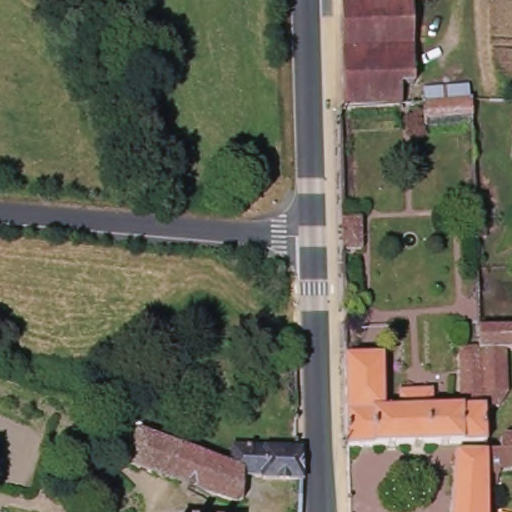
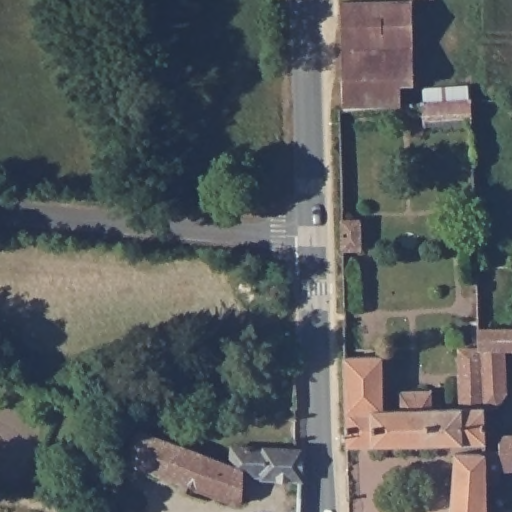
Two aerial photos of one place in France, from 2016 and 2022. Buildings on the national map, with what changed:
unchanged [(410,0),(422,0),(411,1),(410,0)]
unchanged [(411,1),(412,86),(399,86),(399,107),(399,109),(342,112),(340,4),(411,1)]
unchanged [(426,90),(470,90),(471,102),(472,129),(427,129),(427,105),(426,90)]
unchanged [(358,224),(359,254),(344,254),(343,224),(358,224)]
unchanged [(387,413),(402,413),(402,393),(437,392),(437,411),(463,411),(462,351),(480,351),(481,341),(482,331),(512,331),(512,352),(509,352),(510,394),(498,412),(486,412),(486,447),(347,451),(346,358),(386,359),(387,413)]
unchanged [(131,451),(116,445),(122,424),(128,427),(131,427),(189,450),(221,462),(234,467),(235,448),(292,452),(301,452),(302,481),(270,480),(270,475),(247,474),(245,501),(235,503),(180,485),(162,478),(126,466),(131,451)]
unchanged [(487,457),(490,456),(500,455),(504,454),(503,443),(508,438),(512,438),(512,466),(499,468),(499,476),(497,476),(497,485),(497,487),(503,487),(503,488),(503,502),(510,502),(509,512),(486,512),(487,461),(487,457)]
unchanged [(487,461),(486,512),(452,512),(456,457),(487,457),(487,461)]

